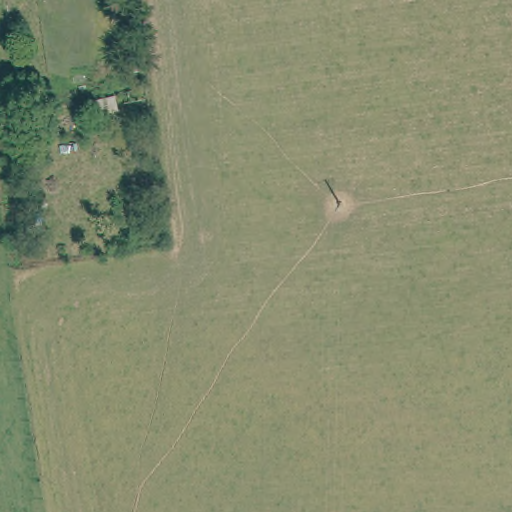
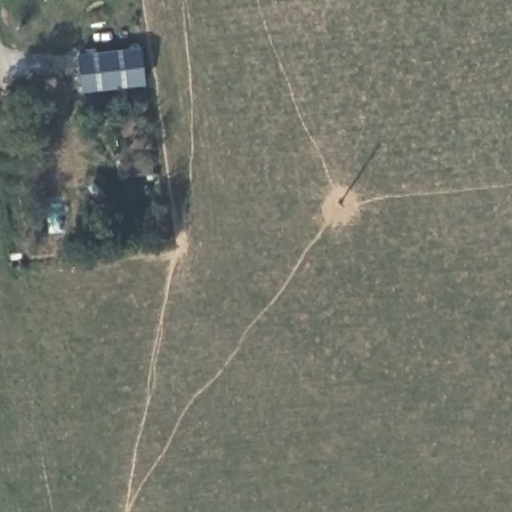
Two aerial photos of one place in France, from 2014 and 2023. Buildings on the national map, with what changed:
new [(146,84),(82,90),(79,55),(141,48),(146,84)]

